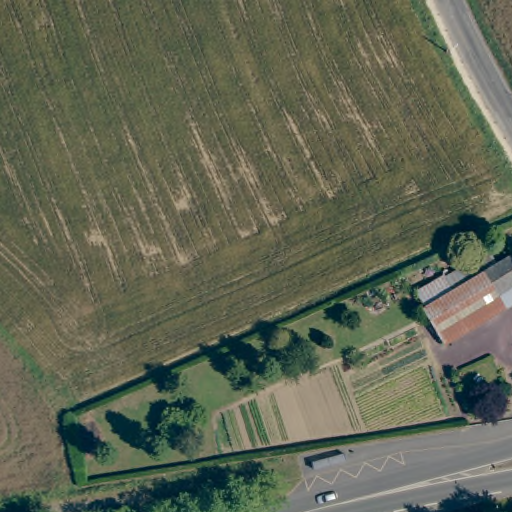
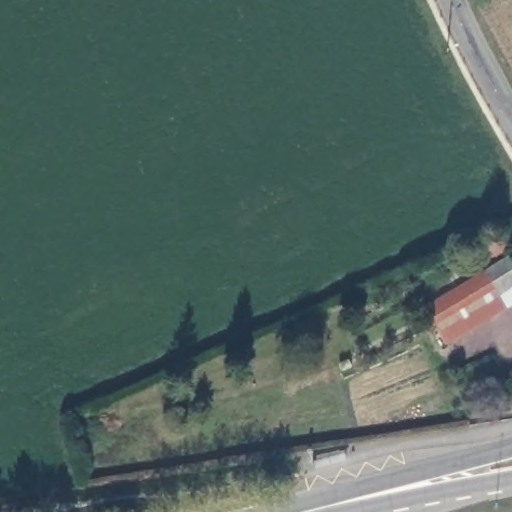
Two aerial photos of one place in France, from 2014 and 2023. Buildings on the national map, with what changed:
unchanged [(506,256),(512,266),(512,296),(441,339),(421,307),(506,256)]

